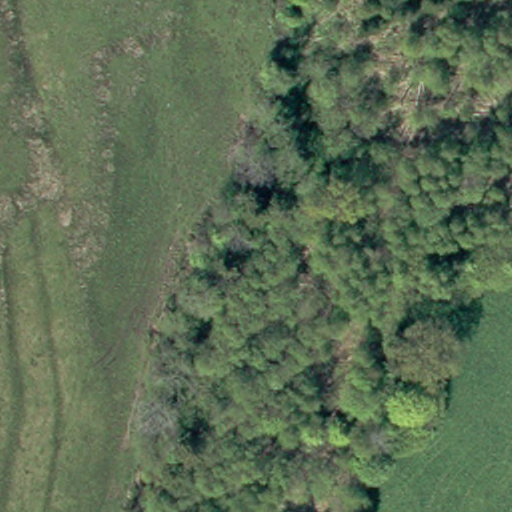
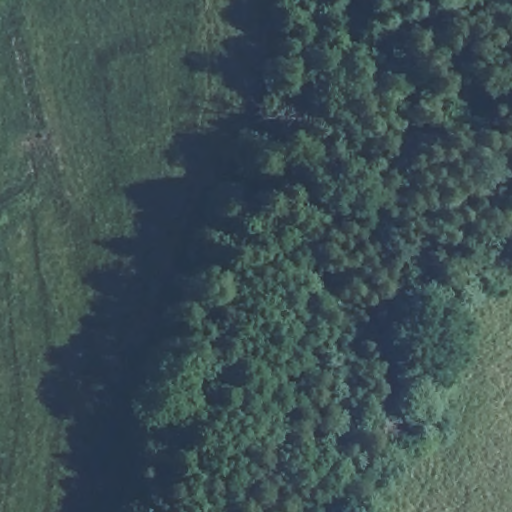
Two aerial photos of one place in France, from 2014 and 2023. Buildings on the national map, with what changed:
[]

